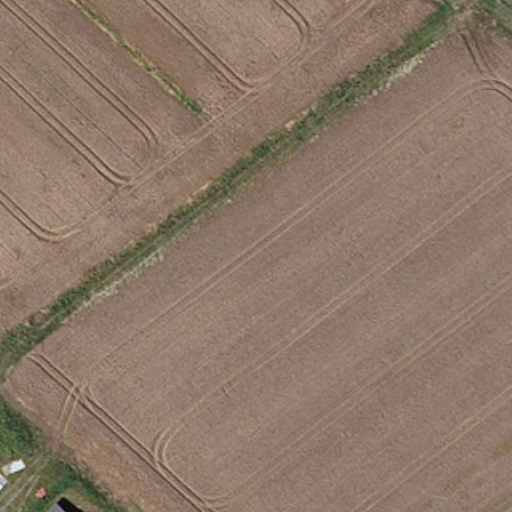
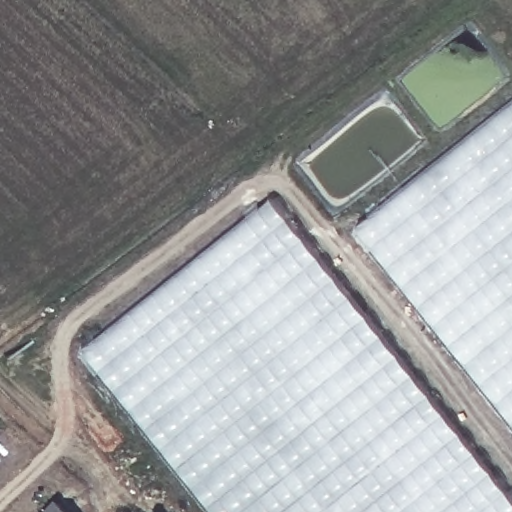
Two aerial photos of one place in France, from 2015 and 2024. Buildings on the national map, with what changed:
new [(358,228),(512,105),(512,419),(358,228)]
new [(273,198),(512,497),(512,512),(214,512),(84,351),(273,198)]
unchanged [(61,498),(78,512),(49,512),(61,498)]

